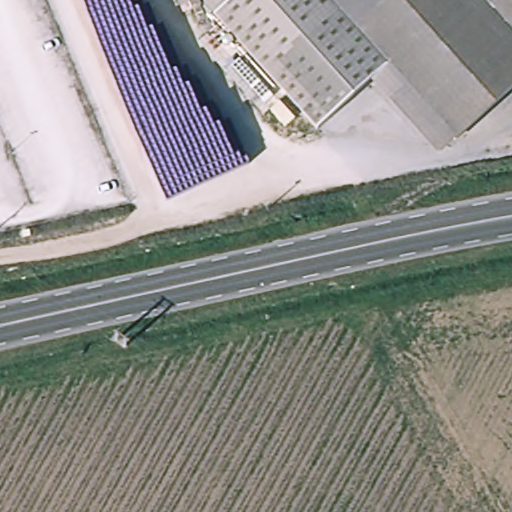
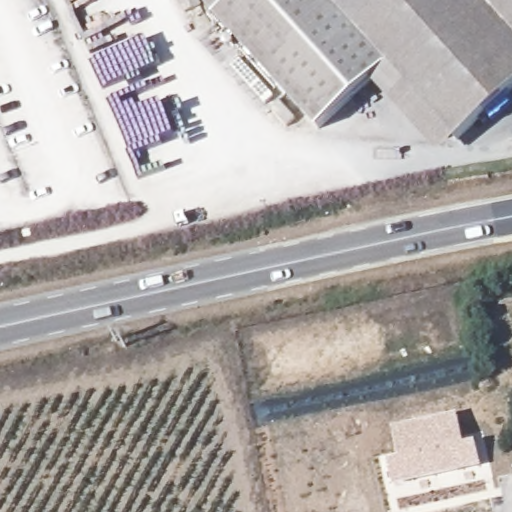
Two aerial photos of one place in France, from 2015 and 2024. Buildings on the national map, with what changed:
unchanged [(455,138),(424,166),(357,91),(321,124),(209,0),(327,0),(455,138)]
unchanged [(327,0),(512,0),(512,86),(455,138),(327,0)]
new [(388,461),(398,459),(392,427),(458,413),(465,445),(475,442),(482,467),(393,486),(388,461)]

